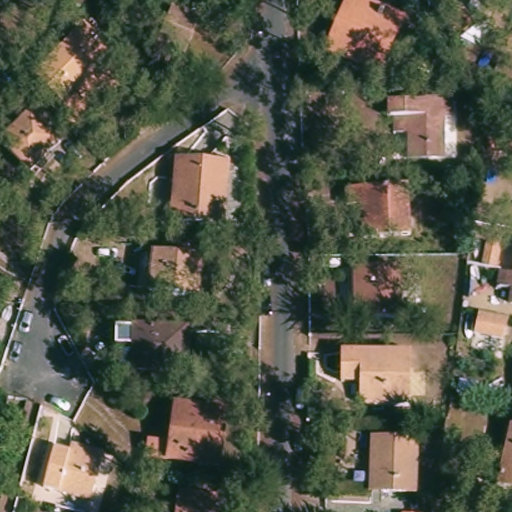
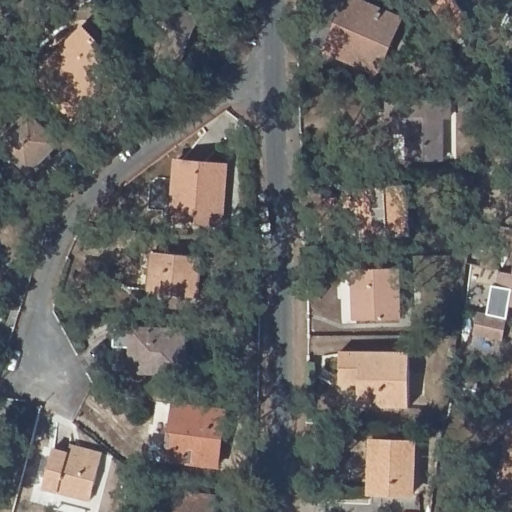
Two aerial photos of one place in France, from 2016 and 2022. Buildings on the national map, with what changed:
unchanged [(195,57),(171,48),(189,0),(201,0),(215,5),(195,57)]
unchanged [(323,40),(333,21),(343,0),(377,0),(401,10),(375,64),(323,40)]
unchanged [(438,0),(467,0),(474,10),(455,24),(438,0)]
unchanged [(66,111),(27,74),(75,22),(89,36),(84,43),(96,54),(87,61),(107,81),(97,93),(73,118),(66,111)]
unchanged [(391,97),(454,98),(453,114),(447,113),(446,155),(410,154),(411,129),(397,129),(397,113),(391,113),(391,97)]
unchanged [(27,168),(0,141),(0,132),(26,106),(56,137),(27,168)]
unchanged [(222,164),(217,224),(169,220),(174,160),(222,164)]
unchanged [(340,194),(340,177),(406,175),(406,228),(355,228),(354,194),(340,194)]
unchanged [(201,252),(197,293),(147,288),(152,248),(201,252)]
unchanged [(496,281),(500,264),(512,266),(512,284),(496,281)]
unchanged [(402,266),(403,315),(358,315),(357,267),(402,266)]
unchanged [(505,340),(476,333),(481,311),(510,318),(505,340)]
unchanged [(180,319),(178,363),(127,360),(128,318),(180,319)]
unchanged [(333,366),(333,343),(403,343),(402,398),(352,398),(352,374),(333,374),(333,366)]
unchanged [(507,394),(512,369),(512,395),(507,394)]
unchanged [(225,404),(217,459),(146,449),(149,432),(167,435),(172,397),(225,404)]
unchanged [(498,487),(512,429),(512,490),(498,487)]
unchanged [(409,433),(406,484),(363,482),(367,431),(409,433)]
unchanged [(35,486),(47,447),(61,451),(62,444),(95,452),(92,459),(82,499),(35,486)]
unchanged [(208,485),(205,512),(168,512),(172,480),(208,485)]

